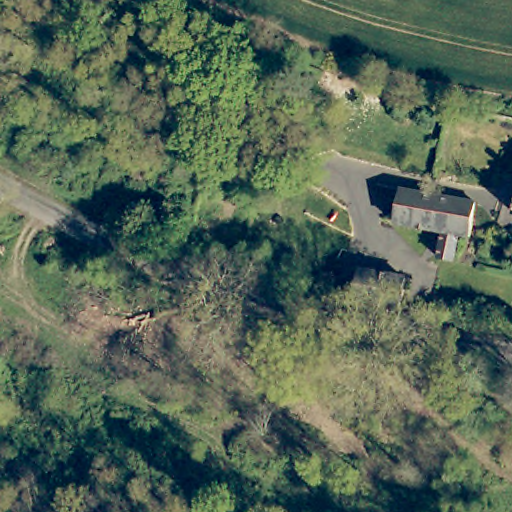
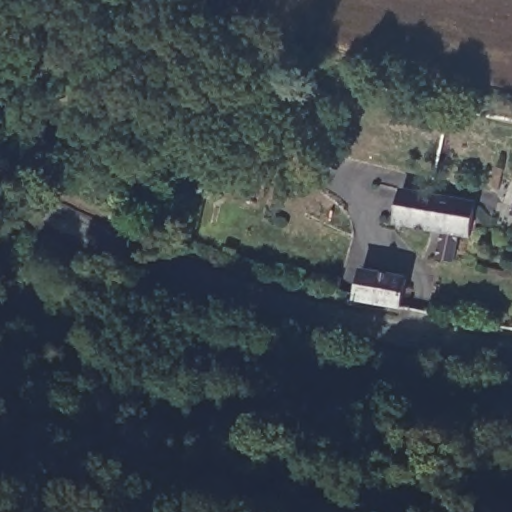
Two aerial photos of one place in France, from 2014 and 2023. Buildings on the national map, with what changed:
unchanged [(408,215),(388,211),(391,196),(371,190),(374,175),(394,181),(414,185),(434,189),(442,190),(483,196),(477,231),(463,228),(458,254),(444,250),(449,225),(408,217),(408,215)]
unchanged [(463,311),(443,307),(452,260),(472,264),(463,311)]
unchanged [(409,277),(404,306),(358,298),(359,296),(365,268),(409,277)]

